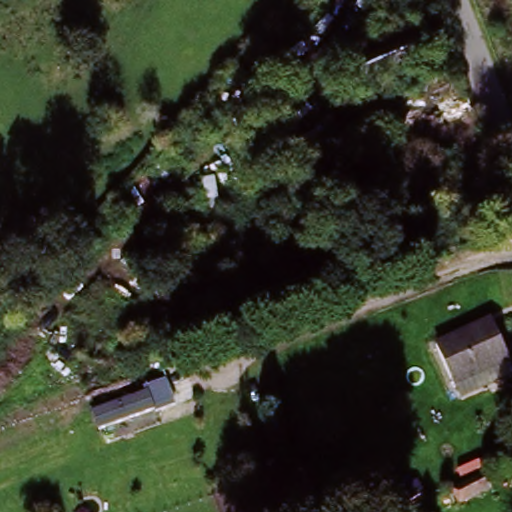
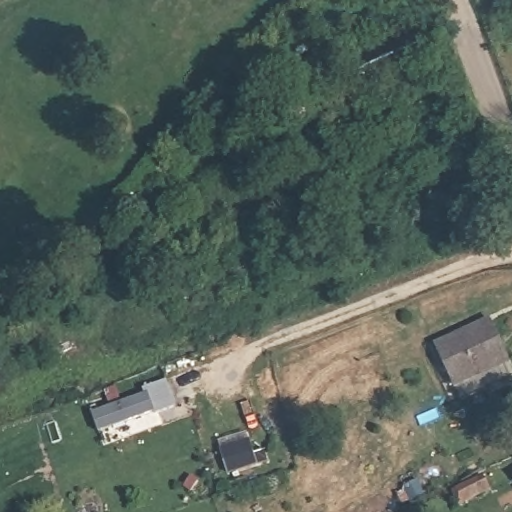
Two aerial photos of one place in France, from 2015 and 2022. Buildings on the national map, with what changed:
unchanged [(440,36),(450,61),(368,92),(359,69),(440,36)]
unchanged [(350,40),(357,60),(340,66),(332,47),(350,40)]
unchanged [(184,326),(171,296),(165,298),(145,253),(174,240),(182,258),(209,316),(184,326)]
unchanged [(460,403),(454,389),(435,351),(491,323),(510,361),(512,366),(512,377),(460,403)]
unchanged [(101,433),(95,417),(146,396),(152,413),(101,433)]
unchanged [(450,489),(482,475),(492,493),(458,510),(450,489)]

